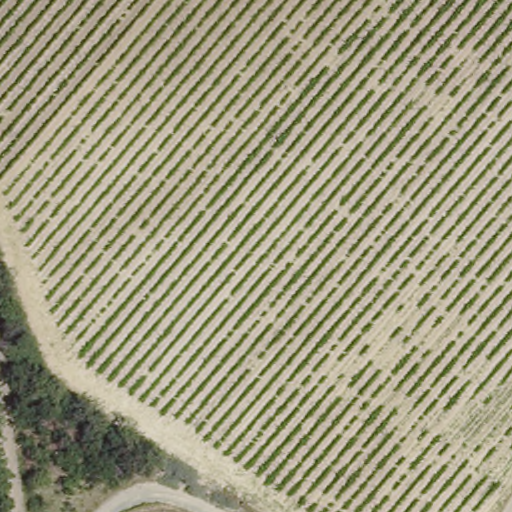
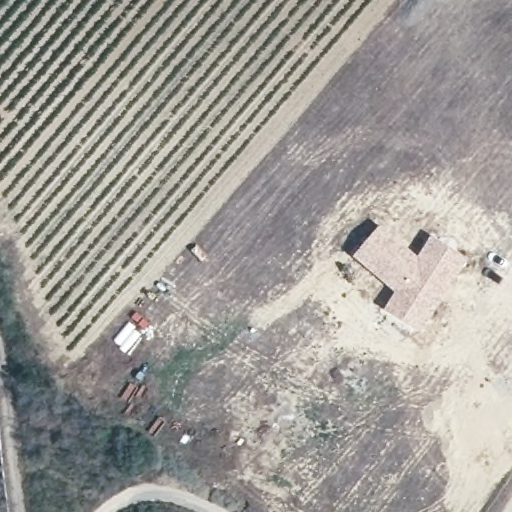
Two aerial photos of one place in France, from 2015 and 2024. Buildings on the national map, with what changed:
new [(379,223),(418,253),(430,234),(468,258),(421,332),(383,309),(394,291),(352,255),(379,223)]

